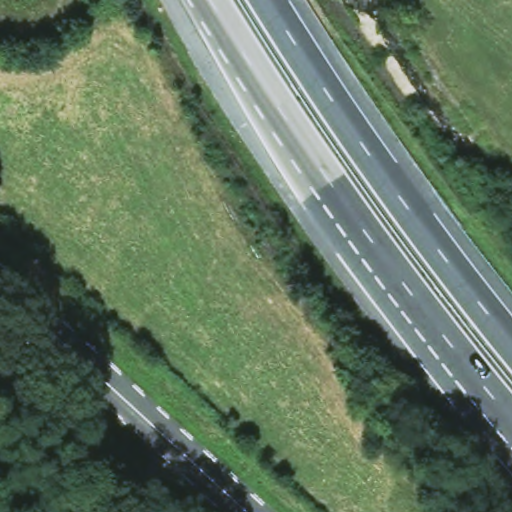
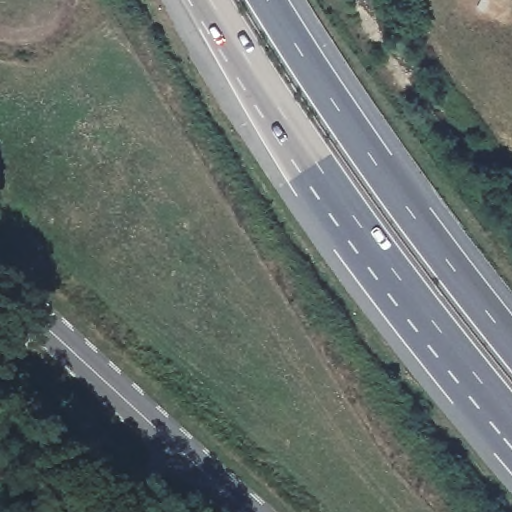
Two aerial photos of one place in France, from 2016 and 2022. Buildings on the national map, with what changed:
[]

